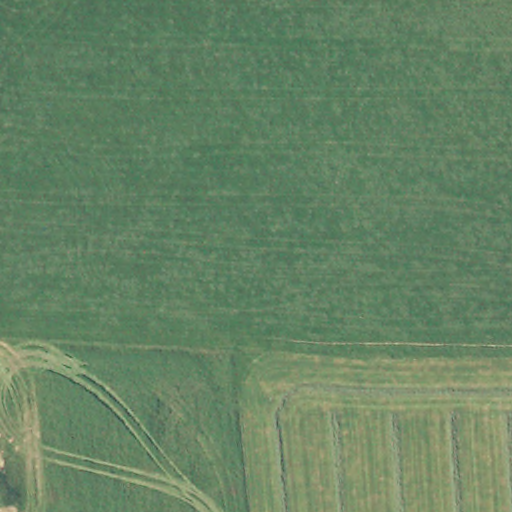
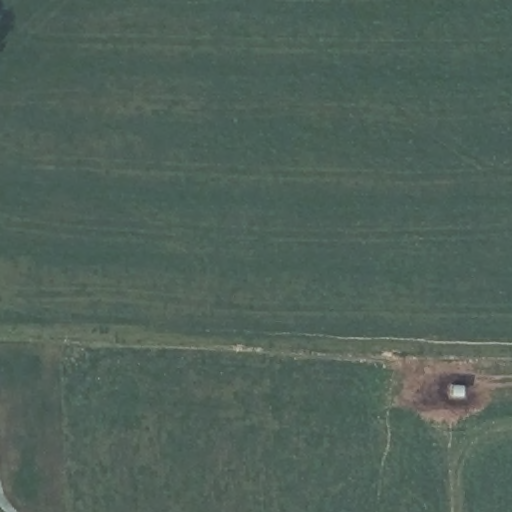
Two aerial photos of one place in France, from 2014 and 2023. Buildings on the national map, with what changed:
[]

